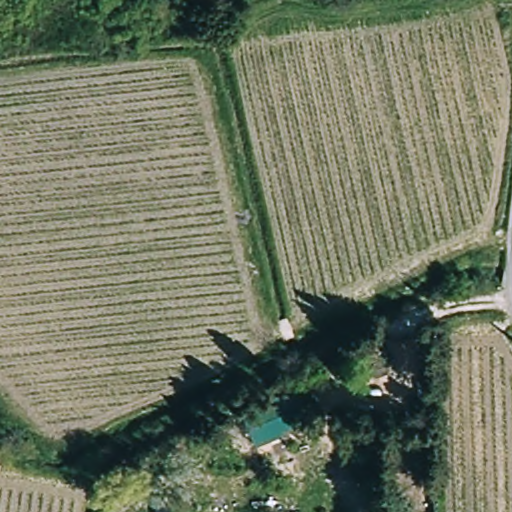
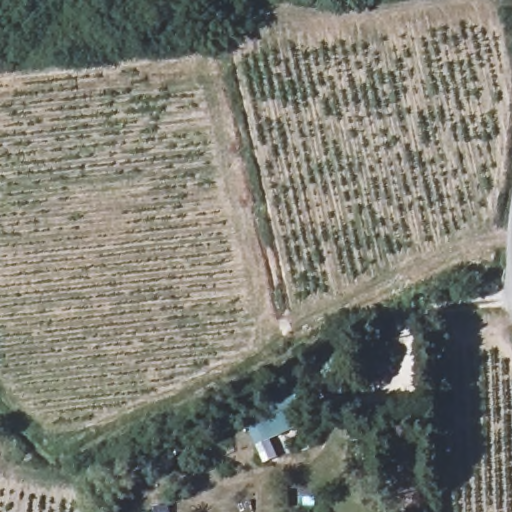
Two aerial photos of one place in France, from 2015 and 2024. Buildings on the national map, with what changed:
unchanged [(388,355),(361,367),(354,351),(381,339),(388,355)]
unchanged [(266,401),(306,386),(311,401),(272,416),(266,401)]
unchanged [(220,429),(253,433),(251,449),(218,445),(220,429)]

